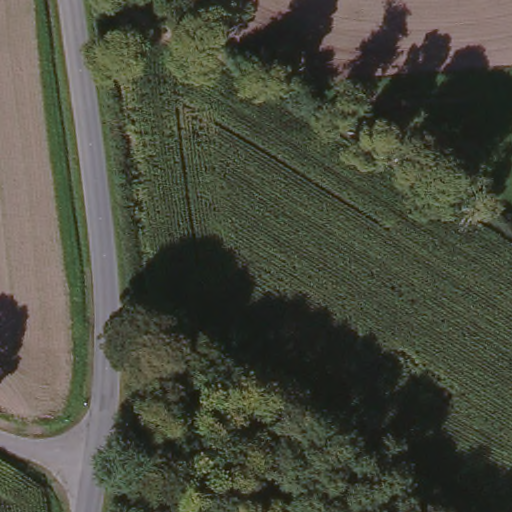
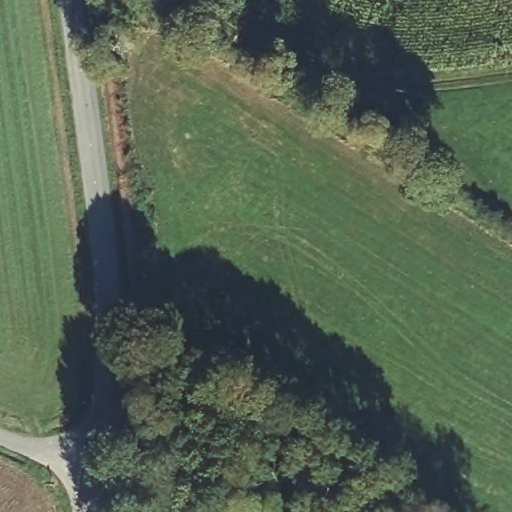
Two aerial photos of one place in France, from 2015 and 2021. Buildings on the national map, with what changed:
[]

